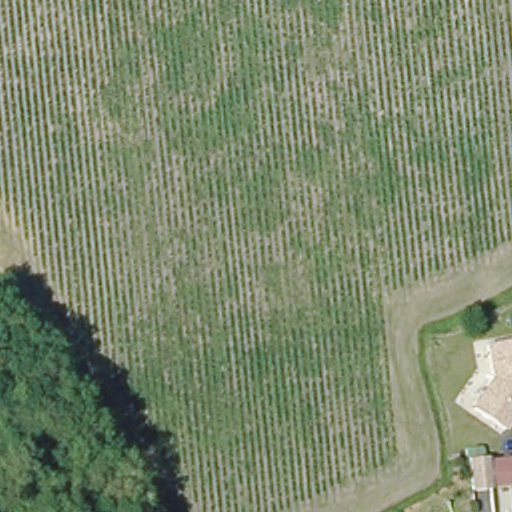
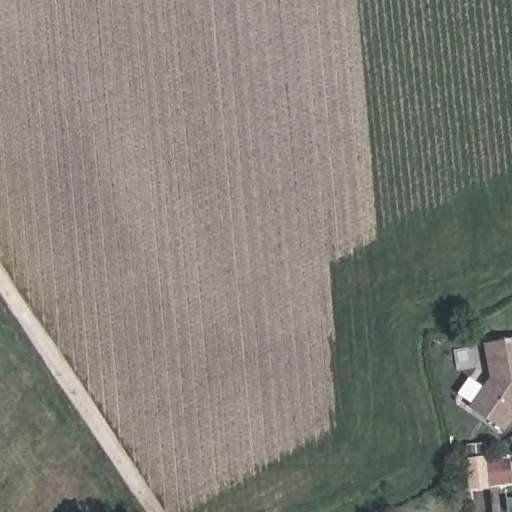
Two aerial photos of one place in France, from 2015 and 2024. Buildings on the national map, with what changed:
unchanged [(474,407),(494,380),(488,346),(512,341),(512,427),(507,434),(474,407)]
unchanged [(482,467),(486,498),(466,500),(462,469),(482,467)]

